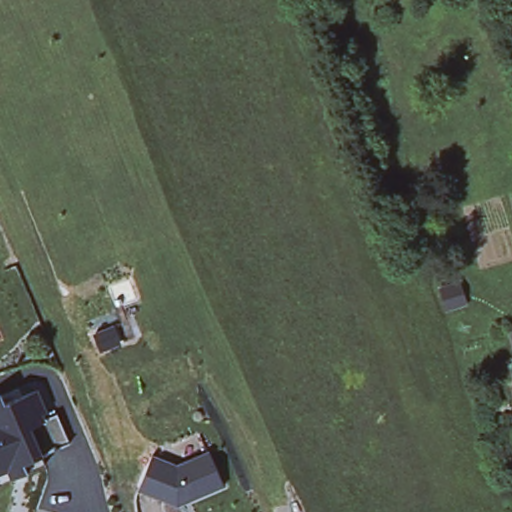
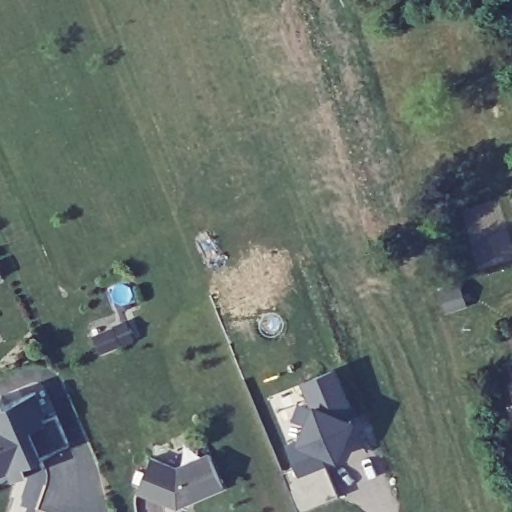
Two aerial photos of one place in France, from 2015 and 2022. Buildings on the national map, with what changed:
new [(350,408),(346,416),(351,419),(336,455),(331,453),(324,456),(339,494),(298,510),(281,469),(296,464),(269,394),(334,369),(350,408)]
unchanged [(0,475),(0,398),(3,396),(6,405),(37,392),(46,413),(42,415),(44,421),(53,417),(58,415),(71,444),(66,446),(43,457),(46,466),(27,474),(14,480),(10,471),(0,475)]
unchanged [(177,465),(211,454),(225,486),(176,507),(136,491),(153,457),(177,465)]

